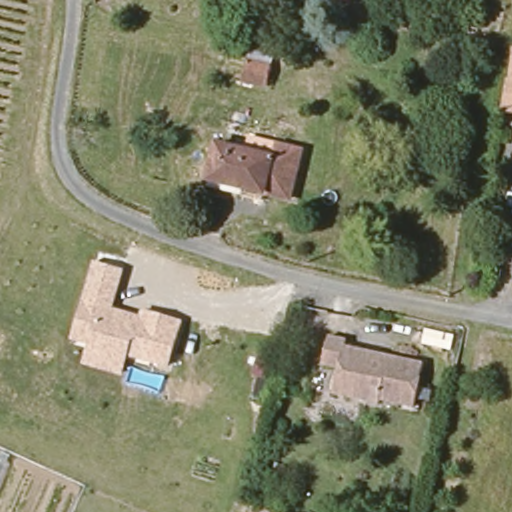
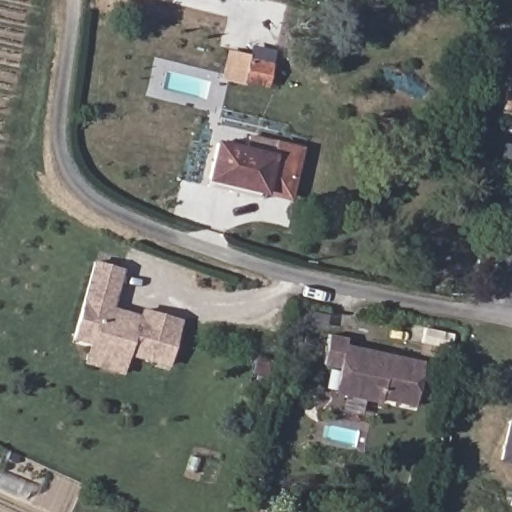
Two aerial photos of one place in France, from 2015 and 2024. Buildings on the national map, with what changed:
unchanged [(276,59),(270,82),(247,76),(253,53),(276,59)]
unchanged [(511,79),(512,79),(512,109),(507,108),(511,79)]
unchanged [(221,146),(277,160),(280,148),(304,155),(292,201),(212,182),(221,146)]
unchanged [(169,366),(128,356),(121,375),(82,363),(89,344),(70,339),(92,260),(123,269),(112,307),(138,314),(140,309),(182,320),(169,366)]
unchanged [(343,367),(327,364),(334,335),(360,342),(359,348),(423,362),(413,405),(381,398),(380,402),(347,395),(338,393),(343,367)]
new [(512,463),(501,460),(509,422),(512,423),(512,463)]
unchanged [(256,506),(268,512),(254,512),(256,506)]

